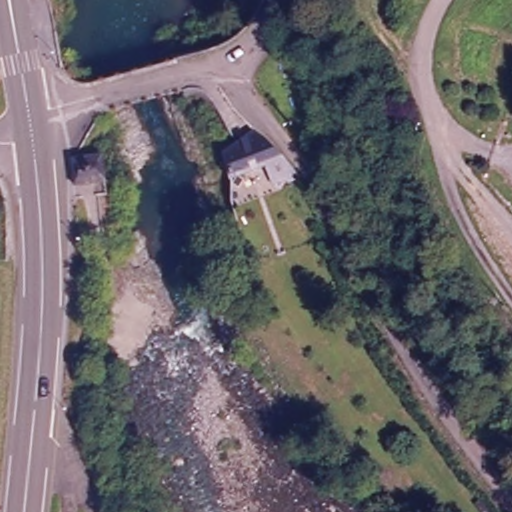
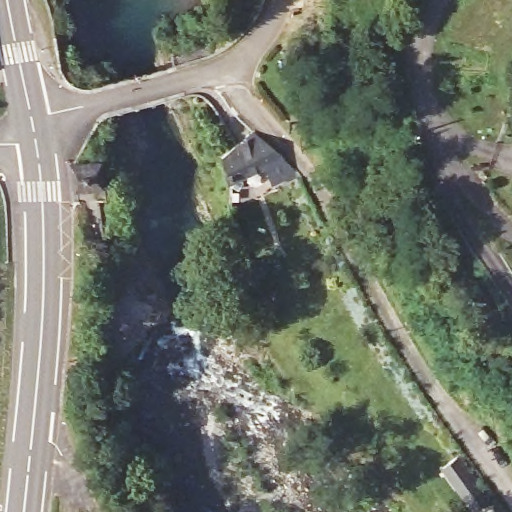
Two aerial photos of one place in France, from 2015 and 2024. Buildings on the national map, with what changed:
unchanged [(274,190),(266,170),(236,182),(227,160),(260,135),(289,161),(303,178),(274,190)]
unchanged [(74,188),(72,160),(102,157),(105,185),(94,186),(74,188)]

